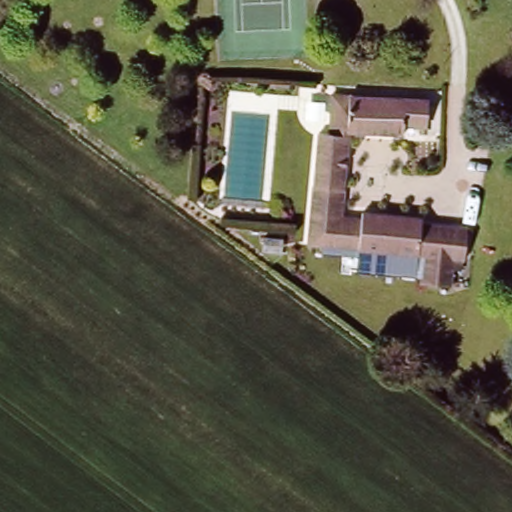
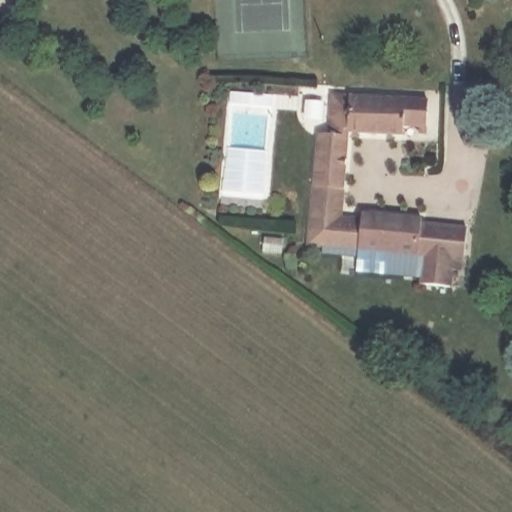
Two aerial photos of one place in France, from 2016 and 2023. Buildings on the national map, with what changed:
unchanged [(430,97),(430,137),(352,135),(345,219),(468,231),(465,264),(457,264),(457,288),(424,287),(425,257),(312,248),(320,135),(332,133),(334,92),(430,97)]

